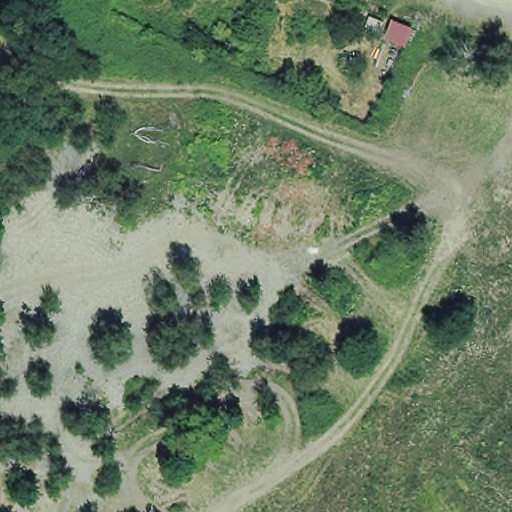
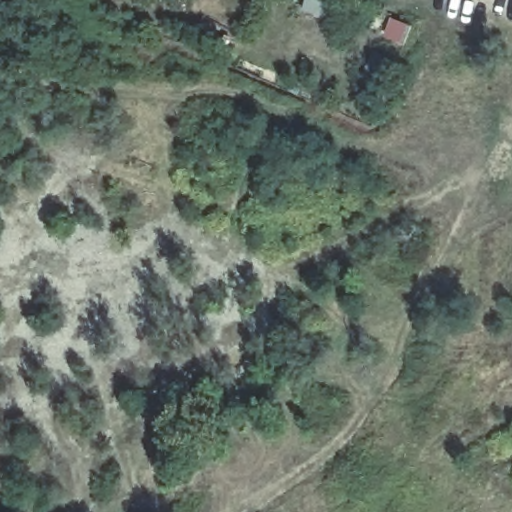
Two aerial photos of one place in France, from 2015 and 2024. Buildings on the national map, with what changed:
[]

